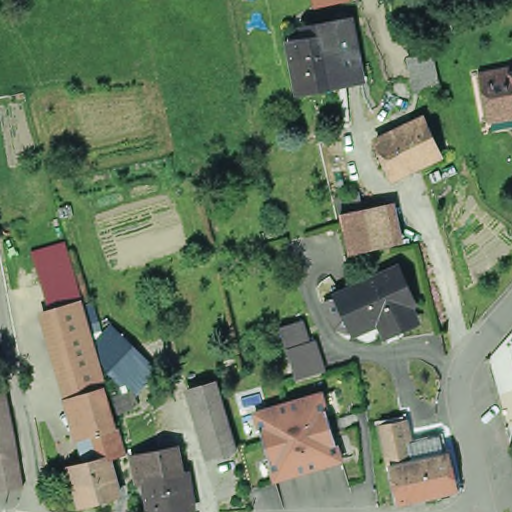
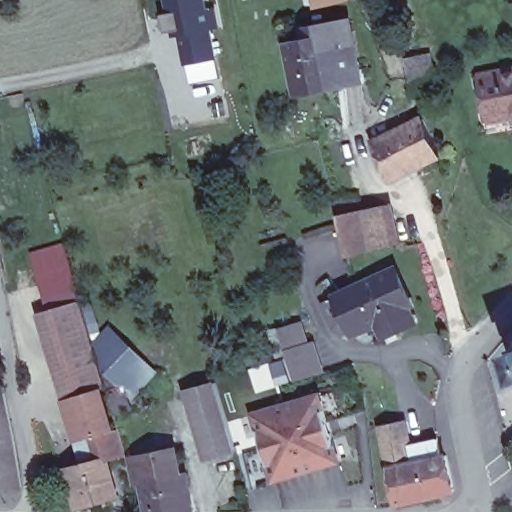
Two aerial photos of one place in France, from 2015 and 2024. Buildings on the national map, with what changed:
new [(218,5),(224,31),(214,33),(219,59),(184,65),(178,35),(172,36),(171,31),(164,33),(161,14),(167,14),(165,0),(207,0),(208,7),(218,5)]
unchanged [(312,0),(348,0),(369,85),(293,103),(281,43),(318,24),(312,0)]
unchanged [(441,87),(414,95),(406,56),(433,50),(441,87)]
unchanged [(489,111),(481,69),(512,65),(512,108),(489,111)]
unchanged [(442,161),(392,184),(376,148),(425,126),(442,161)]
unchanged [(398,249),(354,259),(346,222),(344,207),(367,202),(370,215),(390,211),(398,249)]
unchanged [(344,288),(344,285),(403,259),(418,294),(415,295),(422,310),(389,325),(384,311),(359,322),(354,324),(341,318),(332,293),(339,290),(344,288)]
unchanged [(35,309),(44,305),(36,274),(70,263),(96,345),(108,324),(166,371),(143,409),(105,374),(127,453),(178,439),(196,512),(144,512),(139,494),(136,499),(128,464),(118,467),(123,501),(94,512),(77,512),(60,469),(78,460),(59,399),(35,309)]
unchanged [(311,345),(320,373),(291,382),(284,360),(283,356),(279,344),(276,331),(299,325),(303,338),(306,347),(311,345)]
unchanged [(512,350),(512,356),(511,351),(512,350)]
unchanged [(204,457),(198,433),(185,391),(213,383),(226,424),(233,448),(204,457)]
unchanged [(0,384),(4,384),(13,439),(0,441),(0,384)]
unchanged [(327,406),(324,407),(334,444),(339,442),(344,460),(273,484),(268,466),(270,464),(259,427),(256,429),(251,411),(321,389),(327,406)]
unchanged [(403,507),(394,473),(392,473),(388,459),(385,447),(381,429),(401,425),(405,442),(408,454),(412,469),(419,467),(415,449),(439,444),(443,461),(448,460),(456,495),(403,507)]
unchanged [(19,479),(0,482),(0,441),(13,439),(19,479)]

